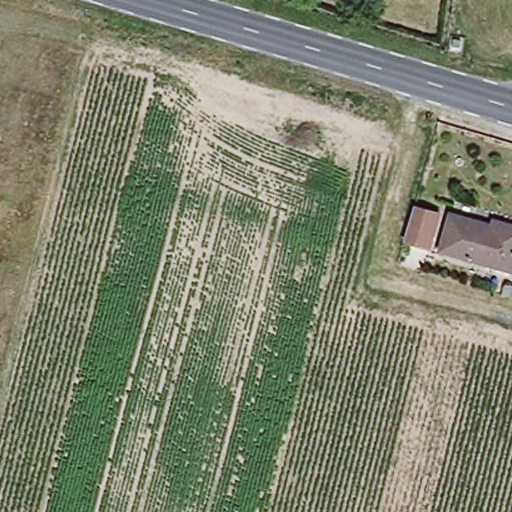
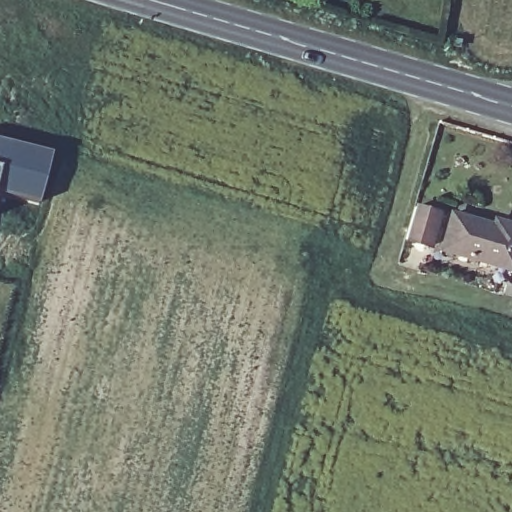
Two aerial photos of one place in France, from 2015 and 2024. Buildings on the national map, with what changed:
new [(38,204),(0,194),(0,164),(0,138),(51,150),(38,204)]
unchanged [(443,218),(432,250),(409,244),(418,212),(443,218)]
unchanged [(435,252),(446,216),(484,226),(486,220),(512,228),(512,272),(435,252)]

